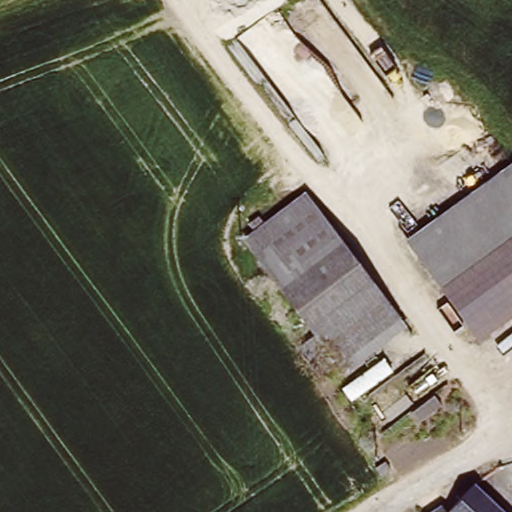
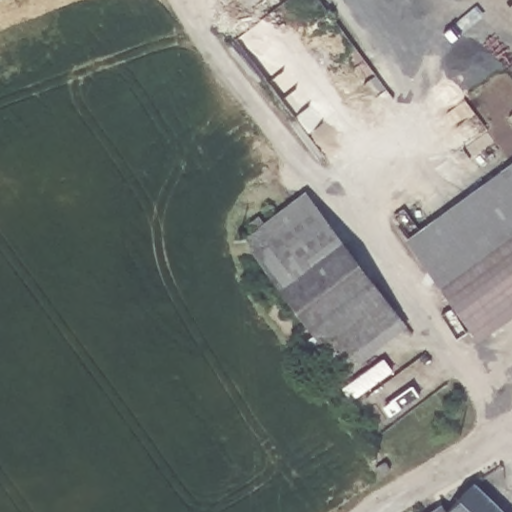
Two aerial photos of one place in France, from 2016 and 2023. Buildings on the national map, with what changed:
unchanged [(419,247),(410,235),(512,161),(512,180),(419,247)]
unchanged [(512,180),(512,318),(485,338),(419,247),(512,180)]
unchanged [(305,347),(324,333),(250,237),(309,192),(407,322),(349,367),(337,351),(317,364),(305,347)]
unchanged [(455,503),(482,477),(483,478),(512,507),(512,512),(433,512),(450,500),(455,503)]

